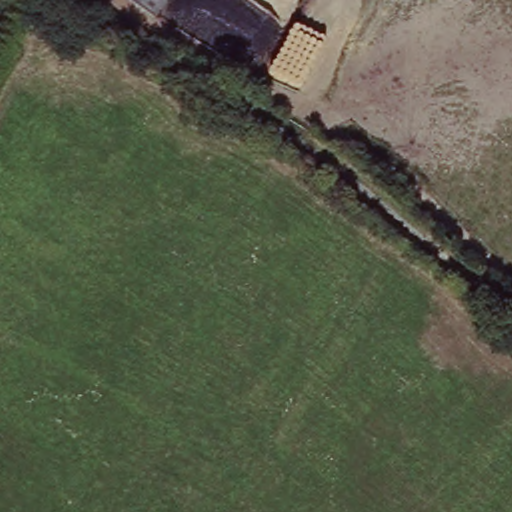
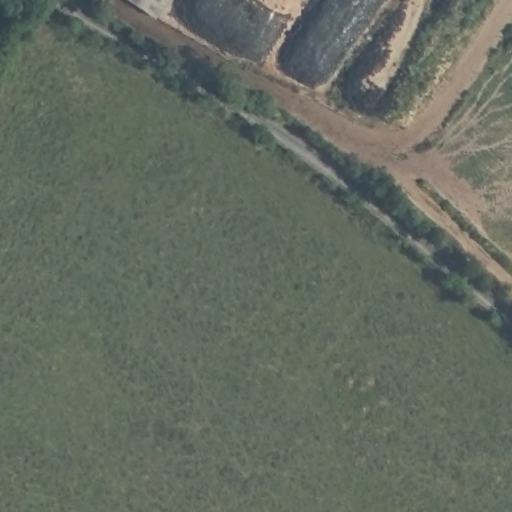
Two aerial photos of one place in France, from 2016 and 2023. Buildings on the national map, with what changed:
unchanged [(127,0),(168,0),(155,18),(127,0)]

